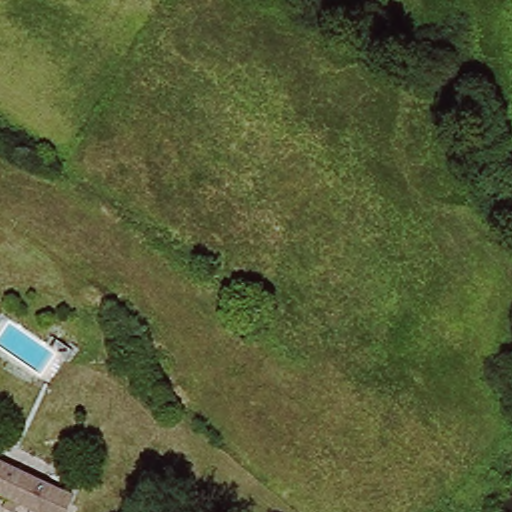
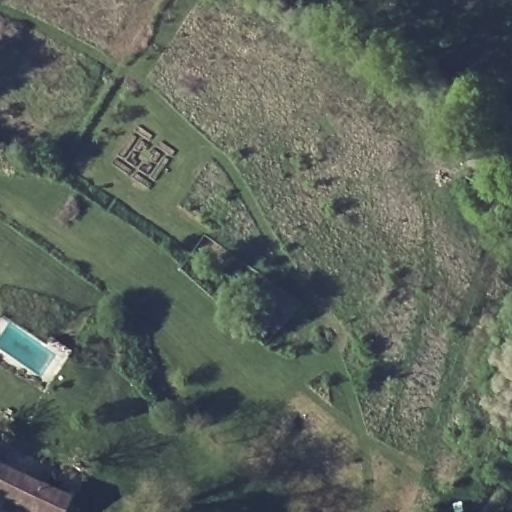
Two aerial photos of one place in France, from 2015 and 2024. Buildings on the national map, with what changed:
unchanged [(4,496),(0,494),(0,457),(74,493),(64,512),(51,512),(7,491),(4,496)]

